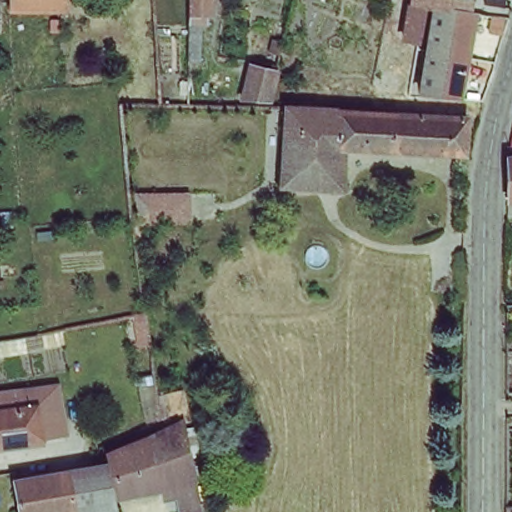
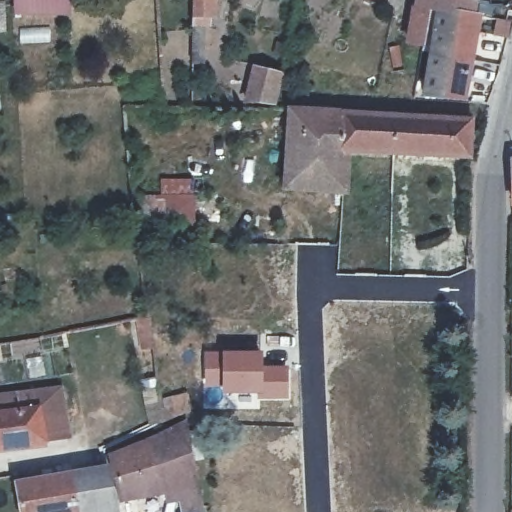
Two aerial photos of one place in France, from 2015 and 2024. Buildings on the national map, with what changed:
unchanged [(64,8),(19,7),(18,0),(64,0),(64,8)]
unchanged [(190,20),(191,0),(219,0),(219,20),(190,20)]
unchanged [(439,9),(432,7),(425,44),(409,41),(417,0),(471,0),(470,15),(439,9)]
unchanged [(500,2),(489,0),(500,0),(500,2)]
unchanged [(465,94),(428,89),(439,9),(470,15),(476,16),(465,94)]
unchanged [(272,107),(248,102),(255,70),(280,75),(272,107)]
unchanged [(466,123),(467,158),(346,153),(345,191),(283,187),(286,111),(402,117),(466,123)]
unchanged [(192,228),(136,230),(136,198),(190,194),(192,228)]
unchanged [(243,196),(258,197),(256,222),(253,222),(240,221),(243,196)]
new [(263,365),(289,365),(289,400),(257,400),(257,395),(221,395),(221,388),(204,388),(203,351),(221,350),(263,350),(263,365)]
unchanged [(0,394),(28,391),(63,387),(73,432),(41,436),(20,438),(0,441),(0,394)]
new [(188,391),(193,411),(168,419),(161,398),(188,391)]
unchanged [(186,509),(182,490),(125,501),(118,464),(190,433),(207,512),(194,512),(193,507),(186,509)]
unchanged [(19,490),(45,485),(105,476),(113,475),(118,512),(24,512),(20,491),(19,490)]

